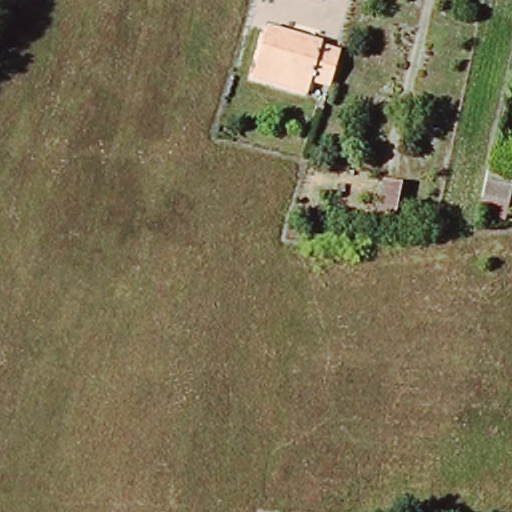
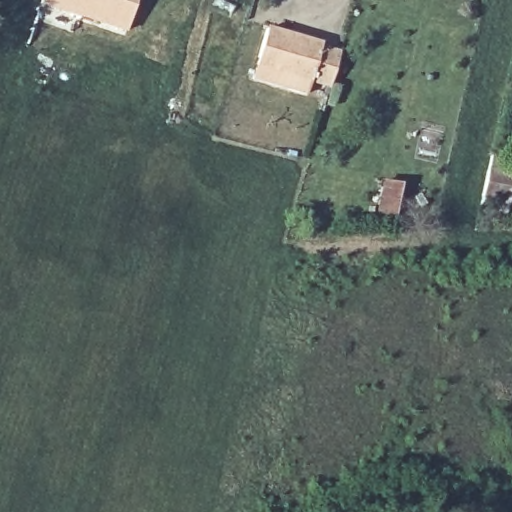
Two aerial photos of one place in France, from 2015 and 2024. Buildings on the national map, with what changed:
new [(43,0),(138,0),(129,29),(43,1),(43,0)]
unchanged [(255,78),(258,66),(270,28),(324,41),(326,47),(340,51),(328,86),(312,81),(308,93),(255,78)]
unchanged [(491,171),(512,176),(512,192),(487,187),(491,171)]
unchanged [(403,184),(396,219),(376,215),(383,180),(403,184)]

